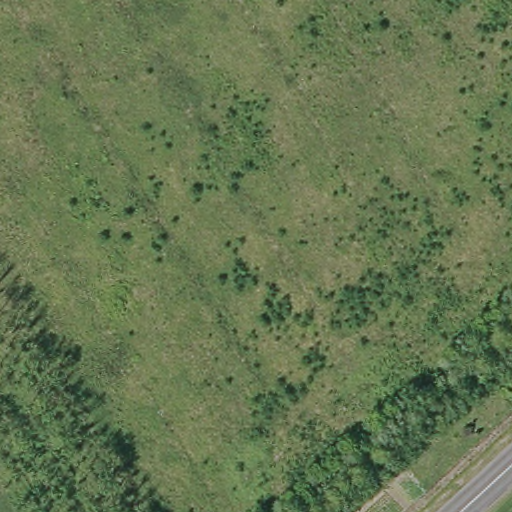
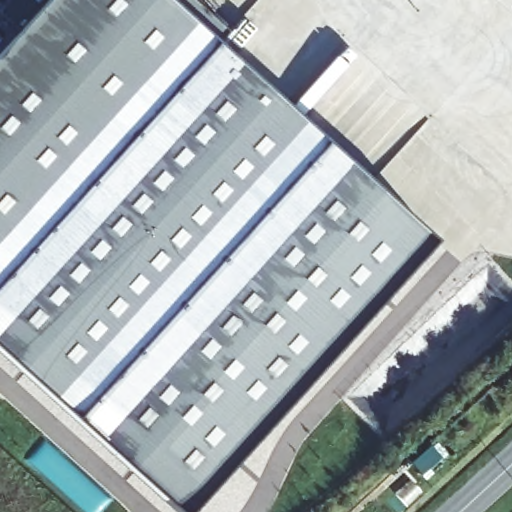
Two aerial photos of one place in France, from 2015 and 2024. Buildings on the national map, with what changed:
new [(0,366),(0,54),(13,40),(0,22),(0,11),(10,0),(157,0),(432,240),(182,512),(163,512),(0,366)]

